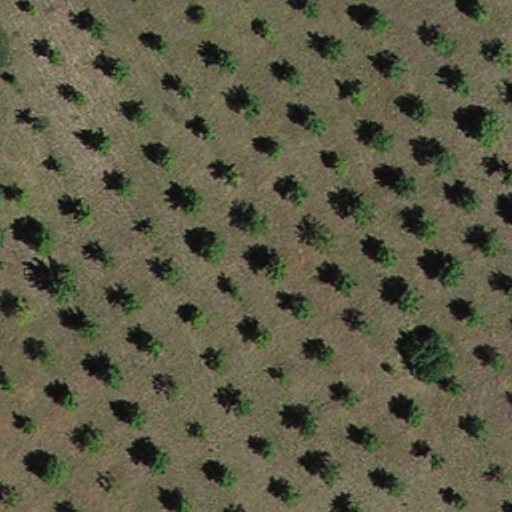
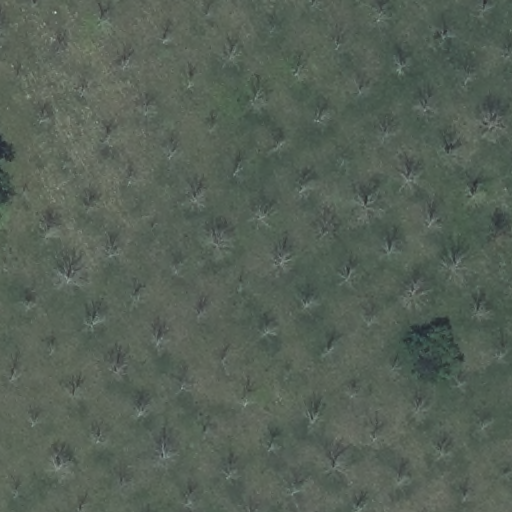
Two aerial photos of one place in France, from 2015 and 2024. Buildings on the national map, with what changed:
unchanged [(428,364),(420,349),(435,342),(442,357),(428,364)]

